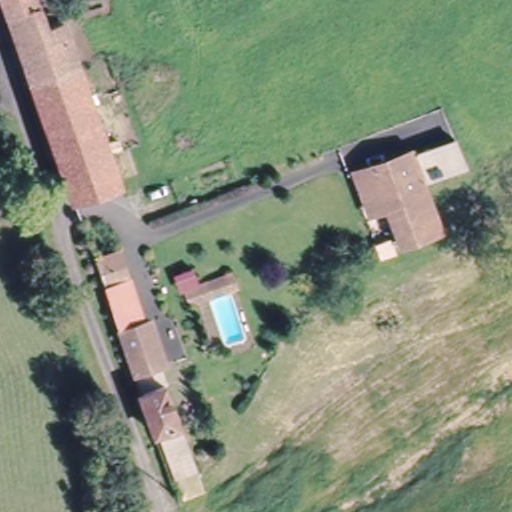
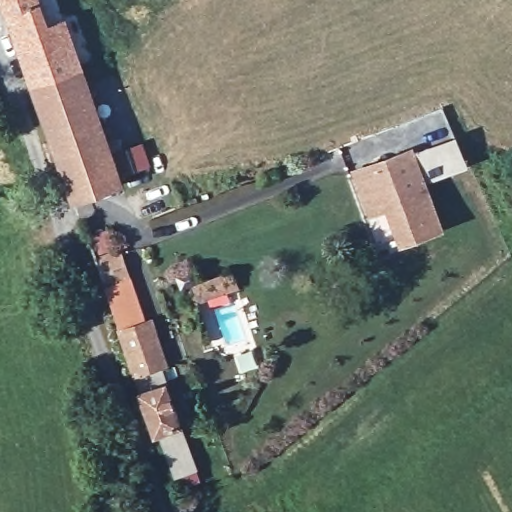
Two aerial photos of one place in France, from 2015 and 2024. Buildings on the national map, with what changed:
unchanged [(45,142),(25,82),(18,62),(9,36),(0,10),(0,0),(35,0),(43,24),(63,18),(78,64),(117,179),(65,199),(62,191),(54,193),(38,144),(45,142)]
unchanged [(359,201),(348,174),(402,152),(431,222),(397,238),(383,205),(363,213),(359,201)]
unchanged [(135,288),(164,372),(138,382),(133,368),(108,297),(135,288)]
unchanged [(168,469),(157,439),(138,382),(164,372),(169,389),(183,429),(193,460),(168,469)]

